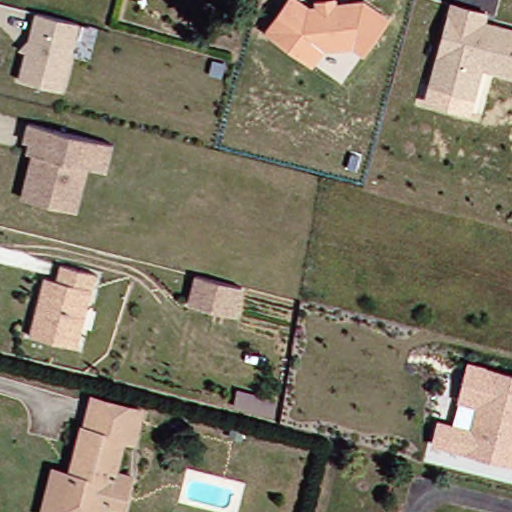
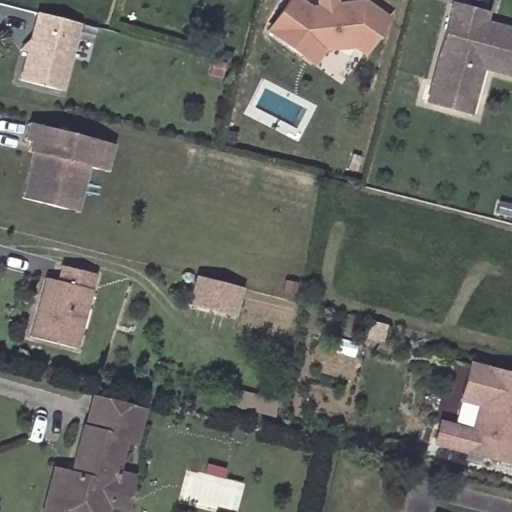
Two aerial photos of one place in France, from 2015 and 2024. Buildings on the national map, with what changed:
unchanged [(264,31),(286,0),(301,0),(310,7),(316,7),(315,0),(338,0),(338,2),(363,0),(391,19),(364,57),(353,49),(322,50),(313,67),(264,31)]
unchanged [(430,84),(452,2),(486,11),(483,20),(512,28),(512,74),(481,66),(473,95),(467,116),(425,106),(430,84)]
unchanged [(35,15),(60,20),(76,24),(60,91),(19,82),(35,15)]
unchanged [(65,209),(21,197),(35,142),(23,140),(27,122),(102,142),(112,144),(105,171),(95,169),(87,167),(75,211),(65,209)]
unchanged [(66,346),(17,335),(28,293),(32,275),(45,278),(49,263),(85,272),(77,304),(72,323),(66,346)]
unchanged [(244,288),(237,317),(189,302),(195,276),(244,288)]
unchanged [(512,463),(434,441),(438,423),(455,427),(470,366),(512,378),(512,463)]
unchanged [(95,502),(92,512),(70,506),(55,502),(62,467),(74,422),(77,422),(85,395),(134,407),(125,439),(112,436),(105,467),(122,472),(120,485),(115,507),(95,502)]
unchanged [(62,467),(55,502),(70,506),(69,512),(36,512),(30,511),(42,462),(62,467)]

